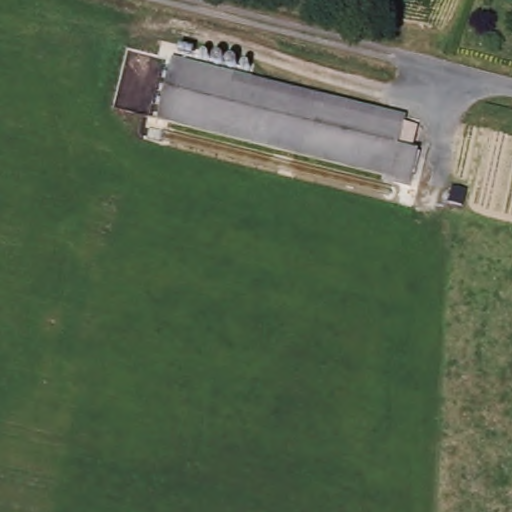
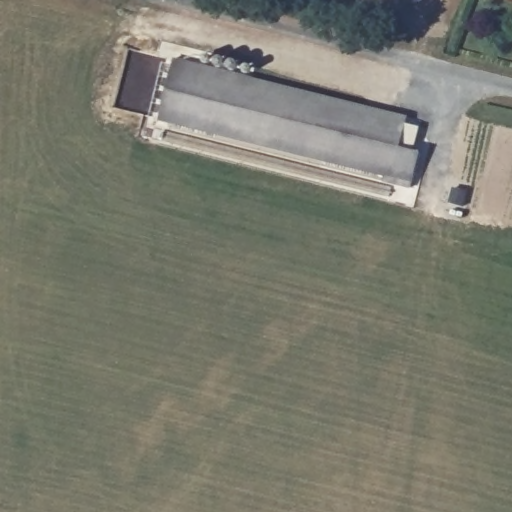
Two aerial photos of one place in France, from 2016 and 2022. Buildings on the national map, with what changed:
unchanged [(404,151),(425,156),(418,186),(161,124),(173,62),(411,119),(404,151)]

